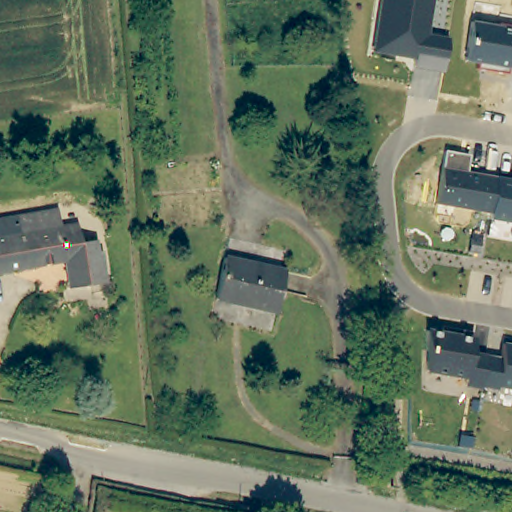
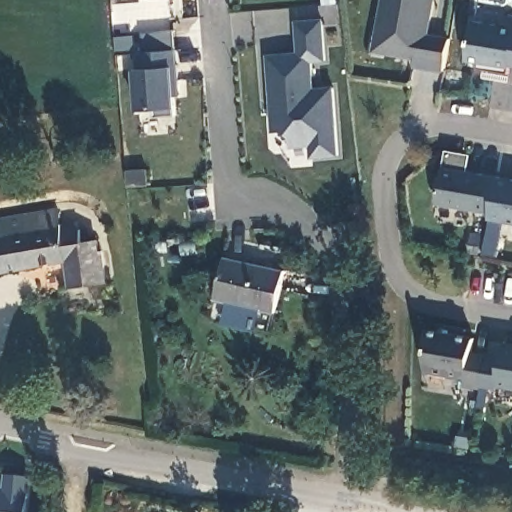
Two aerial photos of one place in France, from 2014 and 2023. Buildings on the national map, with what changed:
unchanged [(448,39),(442,75),(411,70),(413,61),(371,53),(381,0),(432,0),(426,36),(448,39)]
new [(313,64),(316,89),(335,86),(341,156),(312,158),(311,145),(292,147),(291,136),(285,131),(272,133),(266,54),(298,51),(295,22),(324,19),(328,61),(313,64)]
unchanged [(471,23),(512,30),(512,69),(509,69),(508,75),(477,69),(478,64),(463,61),(471,23)]
new [(174,49),(174,66),(176,108),(177,115),(153,117),(153,109),(139,110),(135,69),(139,68),(136,51),(145,50),(143,32),(175,29),(174,49)]
unchanged [(445,152),(470,157),(466,173),(512,181),(512,225),(489,220),(491,214),(435,204),(445,152)]
unchanged [(0,269),(0,221),(60,212),(62,227),(64,226),(64,231),(81,229),(84,243),(99,240),(100,248),(103,248),(109,281),(71,287),(66,259),(0,269)]
unchanged [(274,313),(215,299),(224,259),(283,270),(274,313)]
unchanged [(474,338),(473,354),(502,358),(503,344),(512,345),(512,391),(496,388),(495,392),(479,389),(478,391),(463,388),(464,379),(422,373),(426,330),(474,338)]
new [(0,490),(1,491),(5,475),(33,479),(29,512),(0,512),(0,490)]

